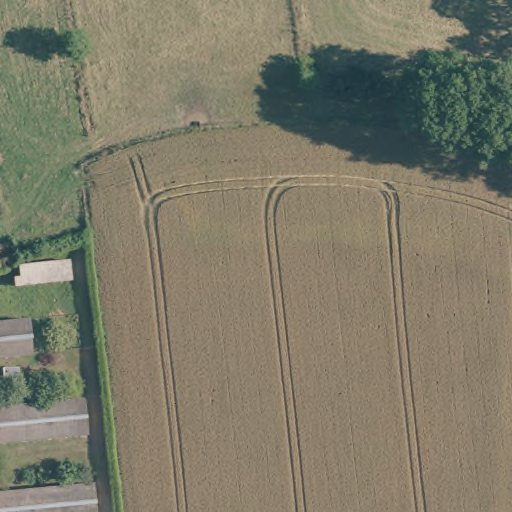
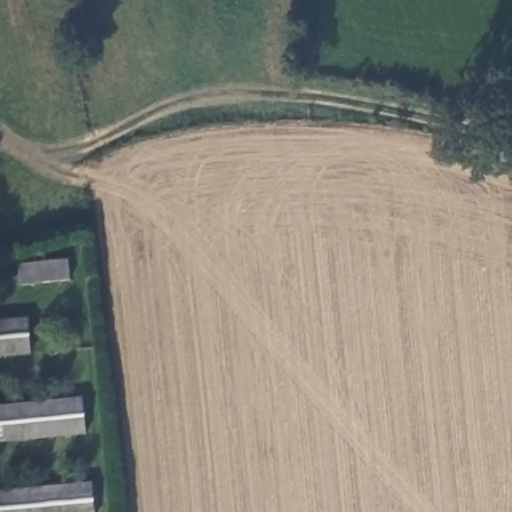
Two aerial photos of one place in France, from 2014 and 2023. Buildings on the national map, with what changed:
unchanged [(71,255),(75,276),(20,284),(19,273),(24,272),(22,262),(71,255)]
unchanged [(30,317),(35,352),(0,357),(0,322),(30,317)]
unchanged [(85,394),(92,431),(0,443),(0,407),(85,394)]
unchanged [(104,512),(4,512),(1,490),(100,478),(104,512)]

